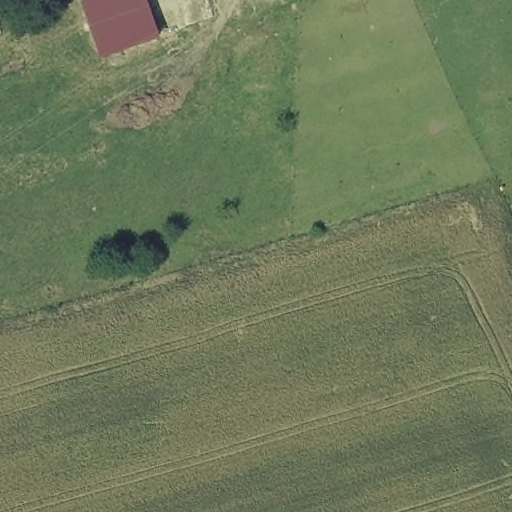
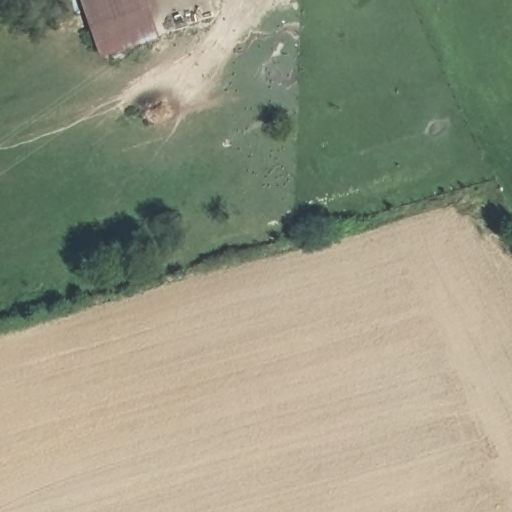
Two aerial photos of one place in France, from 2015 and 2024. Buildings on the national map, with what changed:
unchanged [(103,56),(85,0),(150,0),(162,37),(103,56)]

